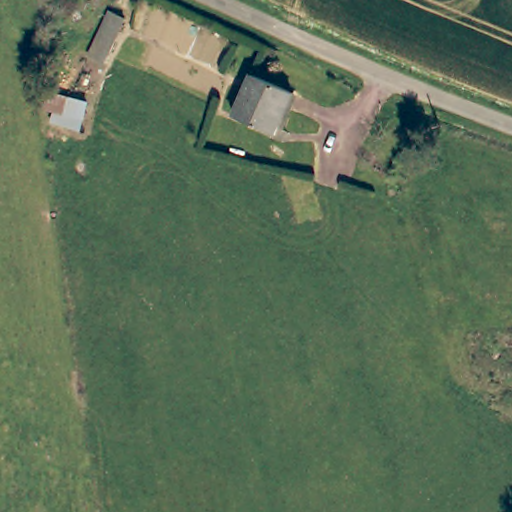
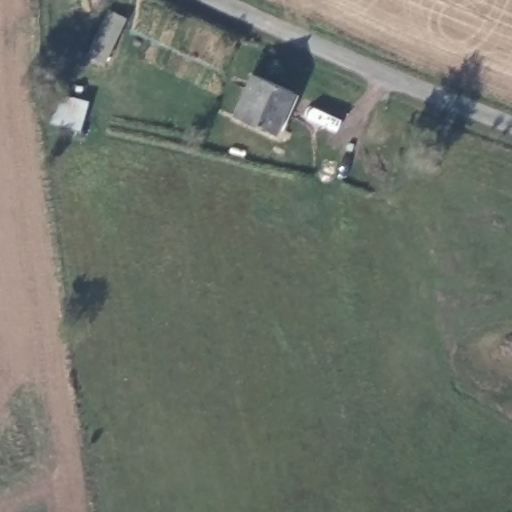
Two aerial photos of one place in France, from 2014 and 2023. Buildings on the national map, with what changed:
unchanged [(275,135),(235,116),(255,76),(294,94),(275,135)]

